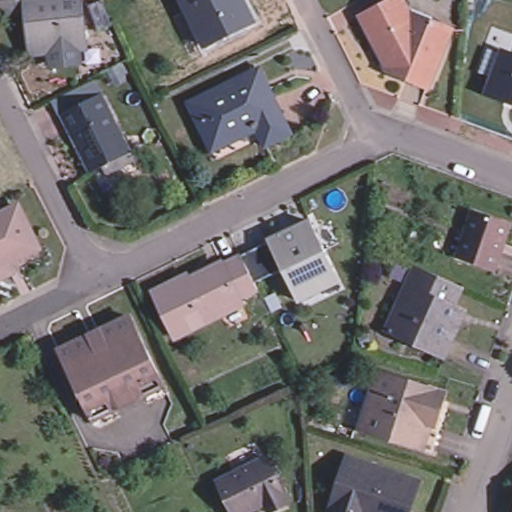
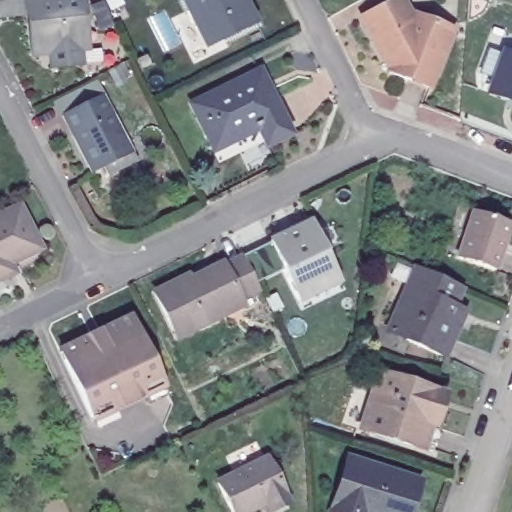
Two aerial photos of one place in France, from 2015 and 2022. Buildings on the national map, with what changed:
unchanged [(57,44),(47,45),(39,45),(35,10),(34,6),(25,7),(25,9),(0,11),(0,6),(0,0),(84,0),(88,41),(81,41),(82,57),(59,59),(57,44)]
unchanged [(182,0),(248,0),(260,23),(205,49),(182,0)]
unchanged [(391,65),(382,49),(378,51),(362,21),(400,0),(401,0),(420,36),(425,37),(430,22),(453,31),(430,90),(388,74),(391,65)]
unchanged [(512,56),(512,101),(492,94),(495,81),(483,75),(491,51),(504,57),(505,54),(512,56)]
unchanged [(265,137),(260,130),(252,116),(207,139),(187,98),(223,79),(225,82),(253,68),(263,85),(268,82),(290,124),(265,137)]
unchanged [(91,168),(87,161),(70,127),(60,110),(102,89),(111,107),(128,140),(132,147),(91,168)]
unchanged [(8,262),(12,271),(0,277),(0,216),(20,207),(40,247),(8,262)]
unchanged [(461,246),(475,207),(512,221),(512,223),(496,267),(458,253),(461,246)]
unchanged [(185,273),(188,277),(220,262),(221,263),(240,254),(268,241),(267,240),(309,219),(335,271),(308,283),(312,292),(296,301),(282,269),(254,282),(257,288),(237,297),(240,302),(174,333),(152,289),(185,273)]
unchanged [(456,327),(442,359),(402,342),(406,332),(388,325),(413,268),(459,288),(450,310),(461,315),(456,327)]
unchanged [(60,359),(57,351),(71,343),(87,336),(87,333),(95,329),(98,331),(113,323),(129,316),(133,324),(162,384),(165,389),(163,395),(148,402),(143,401),(139,395),(88,419),(60,359)]
unchanged [(443,387),(442,392),(448,395),(435,446),(362,425),(379,368),(443,387)]
unchanged [(268,456),(291,501),(272,510),(267,502),(243,512),(236,512),(219,479),(268,456)]
unchanged [(348,456),(350,456),(349,462),(368,467),(370,462),(420,480),(410,512),(330,512),(348,456)]

